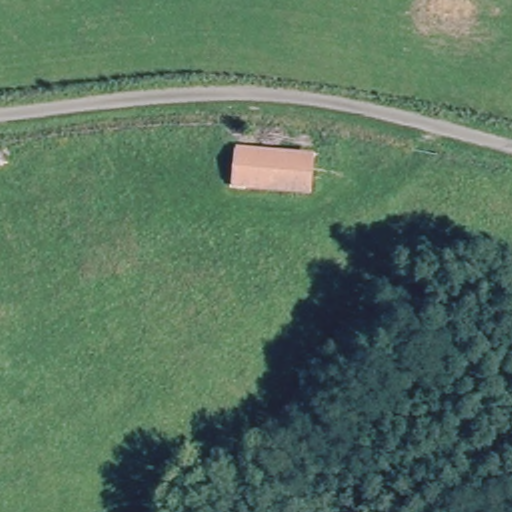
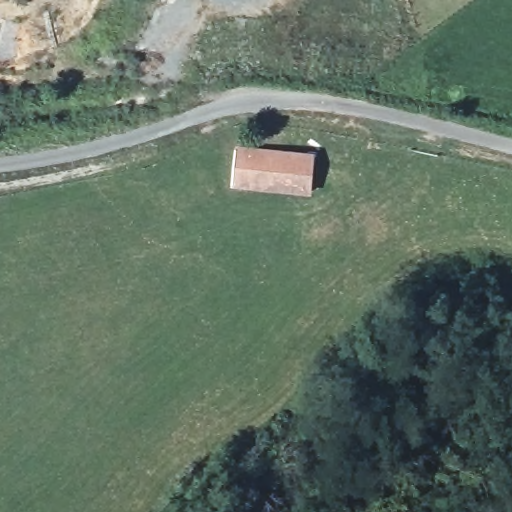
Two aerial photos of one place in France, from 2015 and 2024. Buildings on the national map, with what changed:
unchanged [(308,160),(305,194),(233,187),(236,154),(308,160)]

